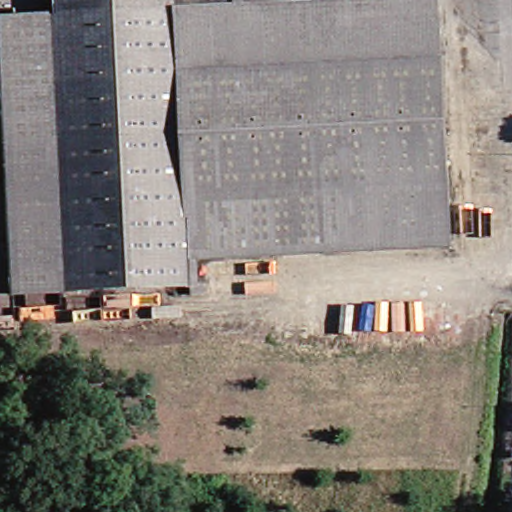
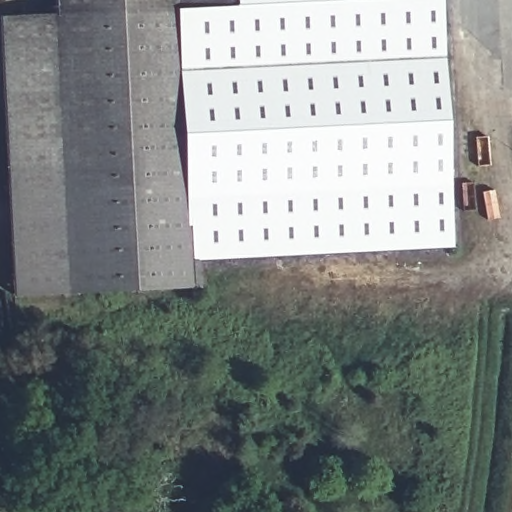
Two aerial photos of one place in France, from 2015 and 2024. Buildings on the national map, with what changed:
unchanged [(44,6),(44,0),(222,0),(221,6),(435,1),(435,66),(179,66),(183,6),(44,6)]
unchanged [(0,6),(44,6),(183,6),(179,66),(177,257),(177,286),(46,287),(47,155),(0,154),(0,6)]
unchanged [(435,66),(432,255),(177,257),(179,66),(435,66)]
unchanged [(0,154),(47,155),(46,287),(0,286),(0,154)]

